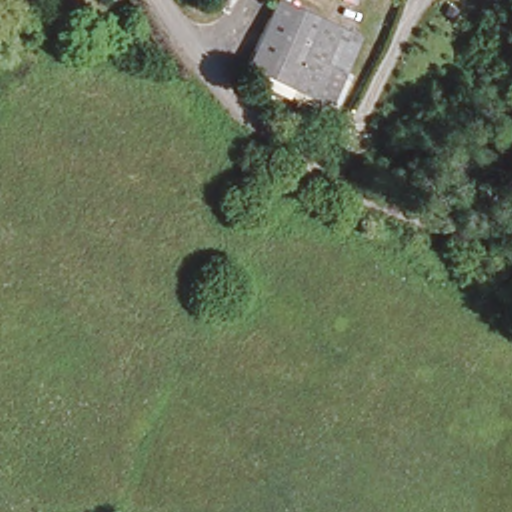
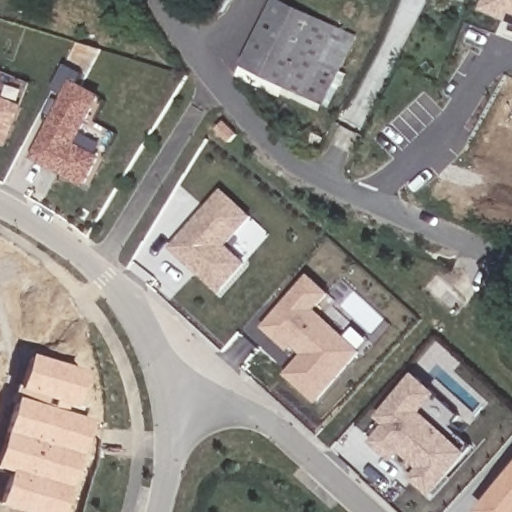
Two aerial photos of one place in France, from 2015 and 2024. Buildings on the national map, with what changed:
new [(274,0),(284,0),(330,21),(298,92),(242,67),(274,0)]
new [(512,0),(512,21),(488,11),(493,0),(512,0)]
demolished [(278,88),(242,57),(287,1),(323,30),(278,88)]
new [(298,92),(330,21),(362,36),(328,106),(298,92)]
new [(73,79),(105,95),(79,143),(105,156),(88,188),(33,158),(73,79)]
new [(28,105),(11,146),(0,142),(0,94),(28,105)]
new [(224,188),(255,217),(229,245),(249,263),(221,294),(170,248),(224,188)]
new [(311,273),(332,293),(318,309),(364,352),(317,404),(284,374),(304,355),(295,347),(289,352),(263,327),(311,273)]
new [(0,469),(0,448),(29,355),(85,372),(73,411),(92,417),(63,512),(22,512),(0,505),(0,503),(10,472),(0,469)]
new [(387,425),(378,417),(419,373),(441,395),(462,416),(449,432),(471,453),(432,497),(412,478),(421,468),(402,453),(393,462),(371,442),(387,425)]
new [(512,512),(481,512),(512,476),(512,512)]

